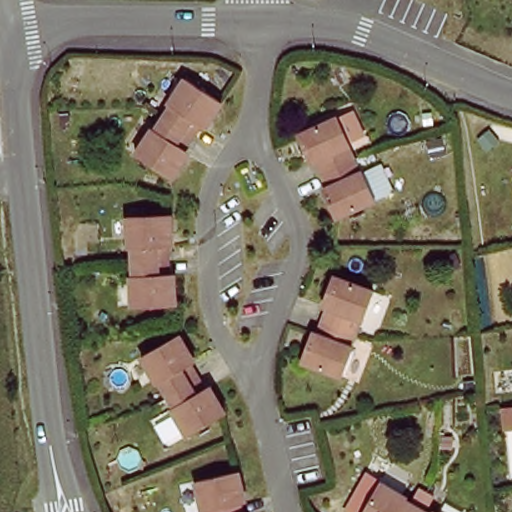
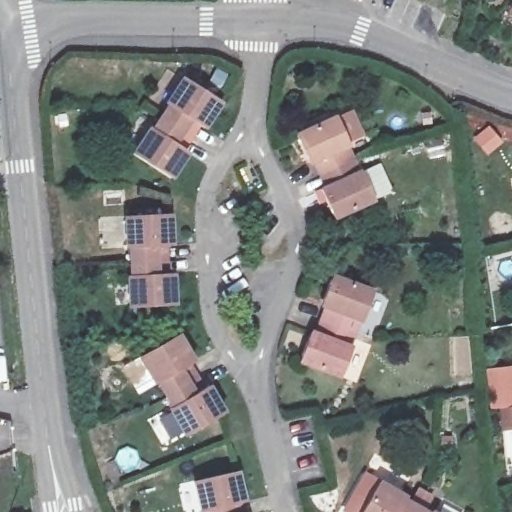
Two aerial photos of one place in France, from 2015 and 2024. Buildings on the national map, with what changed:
unchanged [(161,115),(172,102),(169,100),(184,74),(222,100),(206,125),(195,118),(185,130),(161,115)]
unchanged [(185,130),(179,142),(190,149),(175,171),(136,148),(152,120),(156,124),(161,115),(185,130)]
unchanged [(324,174),(324,172),(320,162),(315,164),(302,132),(341,116),(355,144),(349,147),(355,156),(356,159),(324,174)]
unchanged [(356,159),(360,170),(365,168),(378,200),(337,216),(324,185),(330,184),(324,174),(356,159)]
unchanged [(132,258),(132,245),(126,244),(125,213),(173,211),(175,241),(160,241),(161,257),(132,258)]
unchanged [(161,257),(161,269),(176,269),(177,300),(130,303),(128,271),(134,271),(132,258),(161,257)]
unchanged [(324,320),(325,318),(329,310),(323,305),(336,274),(377,290),(365,321),(362,320),(357,330),(357,332),(324,320)]
unchanged [(357,332),(351,345),(355,346),(344,376),(302,361),(314,329),(321,332),(324,320),(357,332)]
unchanged [(168,390),(160,377),(153,381),(141,356),(180,333),(195,356),(184,365),(192,377),(168,390)]
new [(499,408),(492,410),(487,370),(512,366),(512,431),(502,432),(499,408)]
unchanged [(192,377),(198,388),(210,383),(224,407),(184,431),(170,406),(175,404),(168,390),(192,377)]
unchanged [(246,502),(239,504),(241,512),(200,512),(196,483),(239,475),(246,502)]
unchanged [(365,512),(384,479),(410,493),(409,497),(420,503),(422,503),(417,512),(365,512)]
unchanged [(434,511),(437,507),(445,512),(417,512),(422,503),(434,511)]

